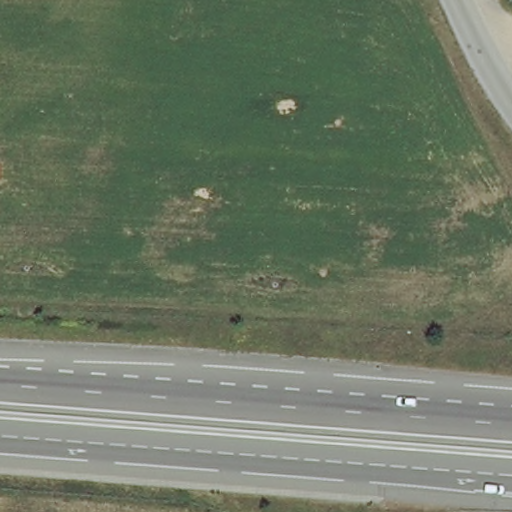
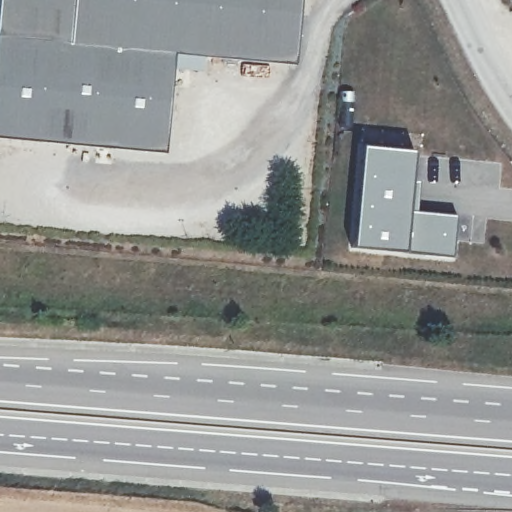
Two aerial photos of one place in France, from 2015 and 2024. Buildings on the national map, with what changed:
new [(174,54),(165,154),(0,138),(0,0),(302,0),(296,66),(174,54)]
new [(416,154),(411,213),(459,217),(455,261),(353,251),(363,149),(416,154)]

